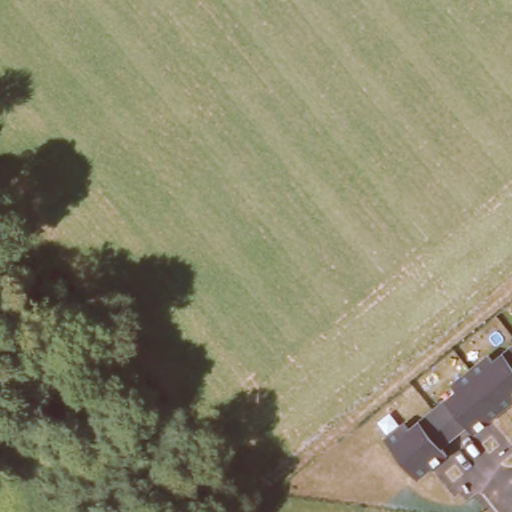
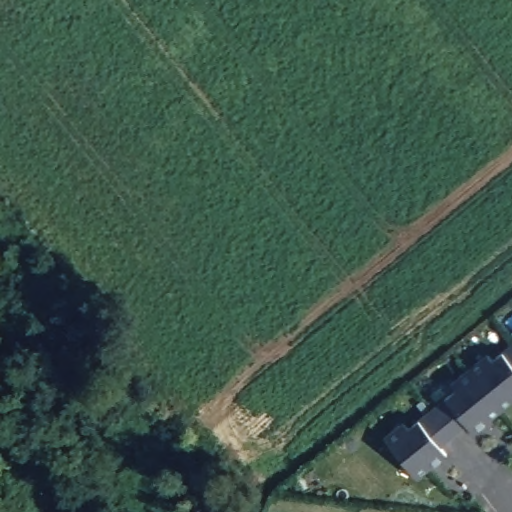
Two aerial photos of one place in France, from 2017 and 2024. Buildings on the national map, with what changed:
unchanged [(400,424),(405,427),(453,387),(449,381),(485,355),(490,361),(512,340),(512,398),(511,397),(489,418),(490,422),(473,433),(469,427),(439,450),(445,456),(415,477),(385,436),(400,424)]

